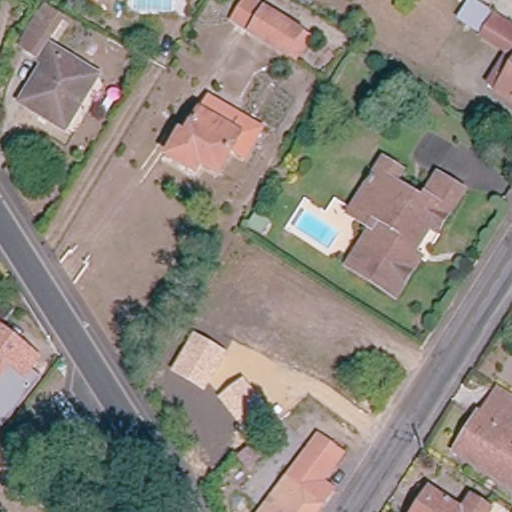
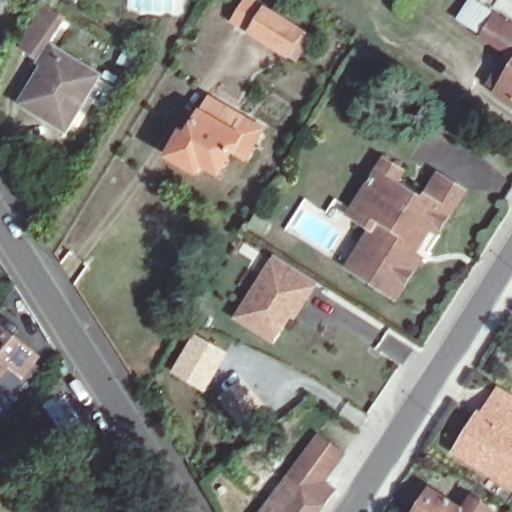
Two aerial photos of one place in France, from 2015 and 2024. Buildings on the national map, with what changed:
unchanged [(476,0),(511,0),(512,1),(512,4),(504,19),(512,25),(512,34),(503,51),(458,20),(470,0),(475,0),(476,0)]
unchanged [(52,1),(65,10),(46,37),(33,27),(52,1)]
unchanged [(254,1),(309,36),(294,60),(239,25),(254,1)]
unchanged [(503,51),(512,34),(512,57),(503,51)]
unchanged [(44,71),(37,65),(46,49),(98,80),(69,132),(24,104),(44,71)]
unchanged [(503,99),(512,84),(512,105),(503,99)]
unchanged [(229,146),(214,170),(198,160),(192,168),(166,153),(178,133),(184,136),(201,112),(210,96),(258,128),(249,141),(242,154),(229,146)]
unchanged [(394,183),(404,189),(426,202),(428,199),(441,179),(461,191),(449,212),(436,234),(426,233),(415,254),(419,259),(397,299),(349,270),(374,230),(349,214),(355,206),(384,161),(402,172),(394,183)]
new [(287,308),(270,336),(234,313),(273,251),(313,277),(304,291),(292,311),(287,308)]
unchanged [(23,366),(11,357),(4,365),(0,362),(0,321),(35,350),(23,366)]
unchanged [(228,355),(205,394),(171,376),(194,335),(228,355)]
unchanged [(244,380),(270,415),(245,432),(219,400),(244,380)]
unchanged [(507,488),(457,457),(479,420),(483,422),(491,408),(492,409),(498,400),(502,392),(512,398),(512,444),(506,455),(512,458),(512,491),(507,488)]
unchanged [(0,422),(0,410),(6,415),(0,422)]
unchanged [(342,451),(324,475),(333,483),(310,512),(258,512),(318,432),(342,451)]
unchanged [(463,512),(417,512),(431,492),(463,512)]
unchanged [(493,511),(492,512),(465,512),(474,500),(493,511)]

